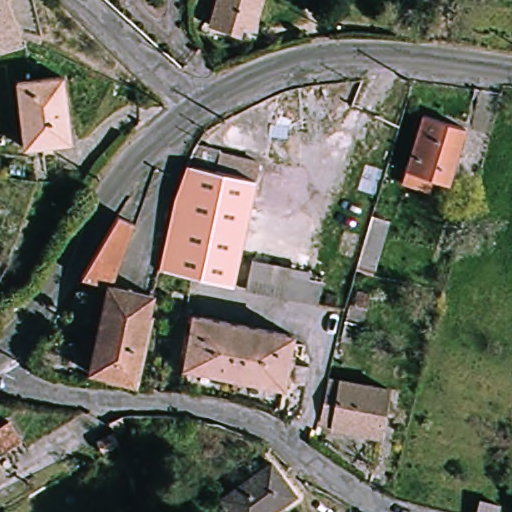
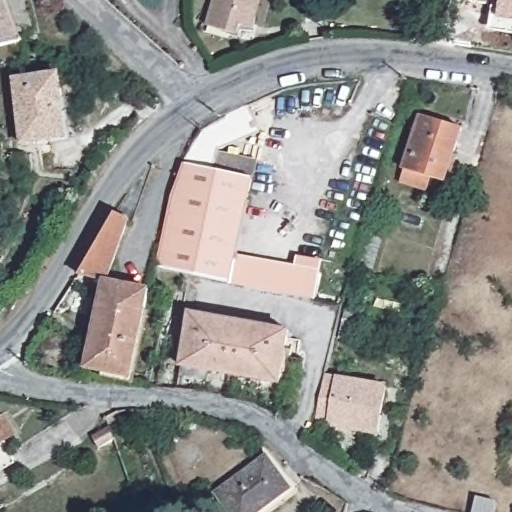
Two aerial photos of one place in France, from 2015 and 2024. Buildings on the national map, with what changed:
unchanged [(0,0),(5,0),(10,29),(0,31),(0,0)]
unchanged [(215,15),(216,0),(256,0),(253,23),(215,15)]
new [(512,0),(512,30),(497,28),(499,0),(512,0)]
unchanged [(21,81),(61,76),(69,140),(30,145),(21,81)]
unchanged [(417,120),(460,134),(444,185),(397,170),(417,120)]
unchanged [(158,267),(178,164),(194,166),(201,148),(255,157),(227,284),(158,267)]
unchanged [(124,227),(107,278),(81,275),(114,216),(124,220),(126,221),(124,227)]
unchanged [(383,266),(363,260),(371,236),(372,234),(391,242),(383,266)]
unchanged [(256,257),(323,269),(318,301),(246,288),(256,257)]
unchanged [(149,289),(130,380),(79,367),(89,337),(107,278),(126,283),(149,289)]
unchanged [(347,308),(349,301),(372,309),(361,343),(337,337),(347,308)]
unchanged [(282,337),(271,384),(181,362),(191,316),(282,337)]
unchanged [(372,440),(312,420),(328,376),(389,394),(372,440)]
unchanged [(22,433),(0,446),(0,421),(11,415),(22,433)]
unchanged [(287,489),(253,512),(227,512),(214,489),(267,456),(287,489)]
unchanged [(0,470),(0,462),(4,468),(0,470)]
unchanged [(481,512),(473,512),(463,509),(468,491),(486,495),(481,512)]

